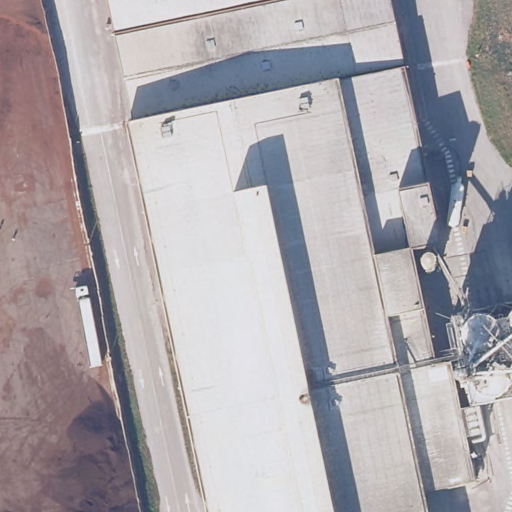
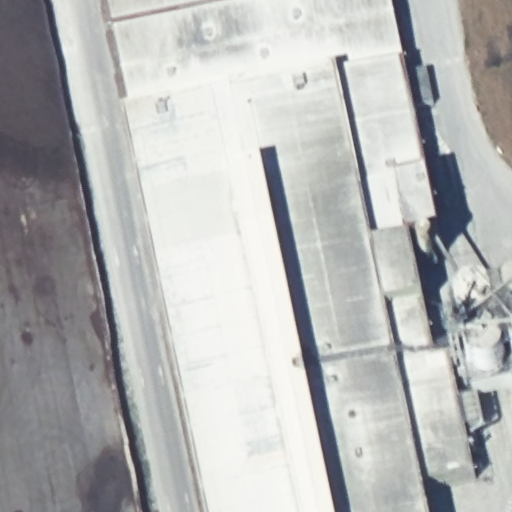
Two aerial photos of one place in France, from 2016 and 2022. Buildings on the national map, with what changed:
unchanged [(476,481),(417,493),(421,512),(213,512),(107,0),(391,0),(442,242),(412,249),(419,279),(430,277),(436,306),(425,308),(437,363),(452,360),(476,481)]
unchanged [(472,402),(455,313),(512,302),(512,394),(472,402)]

